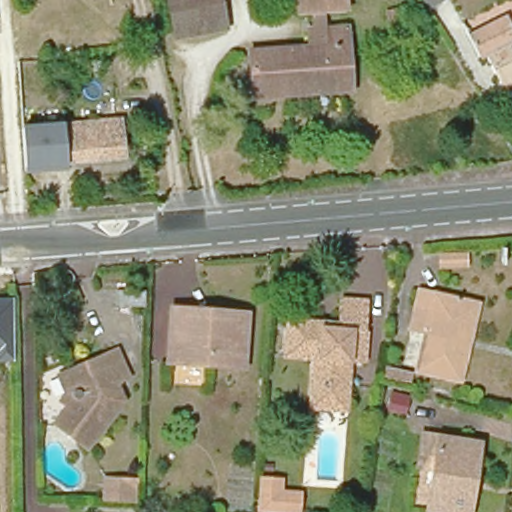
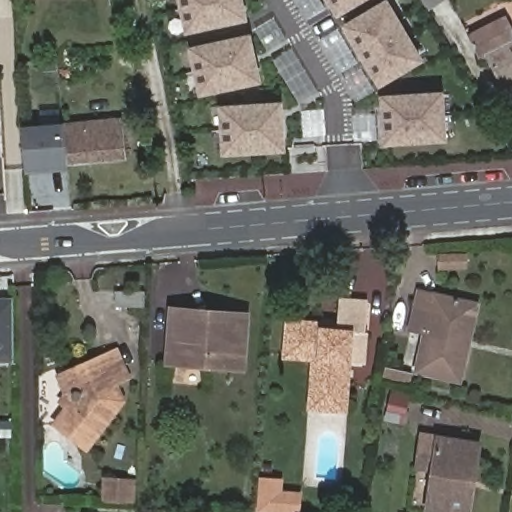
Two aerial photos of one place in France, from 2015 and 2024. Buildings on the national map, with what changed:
demolished [(226,39),(177,49),(167,0),(219,0),(224,25),(226,39)]
new [(184,34),(176,0),(243,0),(247,21),(184,34)]
demolished [(323,12),(325,29),(347,27),(350,90),(251,97),(248,50),(305,46),(304,31),(304,29),(305,29),(312,28),(311,14),(297,14),(297,10),(296,0),(345,0),(345,7),(345,12),(323,12)]
new [(327,0),(366,0),(337,17),(327,0)]
new [(388,0),(424,61),(379,87),(341,25),(382,0),(388,0)]
unchanged [(443,0),(427,10),(421,0),(443,0)]
demolished [(386,14),(406,10),(409,27),(390,31),(386,14)]
unchanged [(474,43),(506,25),(512,35),(512,89),(508,91),(491,60),(485,62),(474,43)]
new [(252,34),(262,82),(197,95),(187,47),(252,34)]
new [(444,90),(448,142),(383,145),(379,94),(444,90)]
new [(283,100),(285,152),(221,155),(219,104),(283,100)]
unchanged [(65,127),(70,127),(120,122),(124,159),(74,164),(69,165),(48,167),(45,129),(65,127)]
unchanged [(64,123),(65,127),(45,129),(48,167),(69,165),(69,171),(28,174),(23,126),(64,123)]
unchanged [(465,254),(466,268),(439,268),(439,254),(465,254)]
unchanged [(426,367),(434,331),(418,327),(426,289),(475,300),(484,302),(475,343),(468,377),(426,367)]
unchanged [(140,293),(139,308),(111,307),(111,292),(140,293)]
unchanged [(0,362),(0,296),(14,296),(13,362),(0,362)]
unchanged [(313,356),(285,354),(288,316),(323,318),(339,319),(340,298),(368,300),(365,348),(364,362),(352,362),(349,411),(320,409),(309,408),(313,356)]
unchanged [(172,361),(177,305),(196,307),(252,311),(252,317),(248,367),(172,361)]
unchanged [(131,377),(119,382),(126,400),(90,448),(58,424),(71,406),(64,401),(67,396),(60,377),(70,372),(120,352),(131,377)]
unchanged [(395,366),(419,372),(417,381),(393,376),(395,366)]
unchanged [(438,508),(443,469),(428,467),(432,432),(482,439),(489,440),(483,492),(480,512),(465,512),(438,508)]
unchanged [(140,472),(139,491),(114,490),(115,470),(140,472)]
unchanged [(285,471),(283,483),(303,485),(302,502),(264,499),(267,470),(285,471)]

